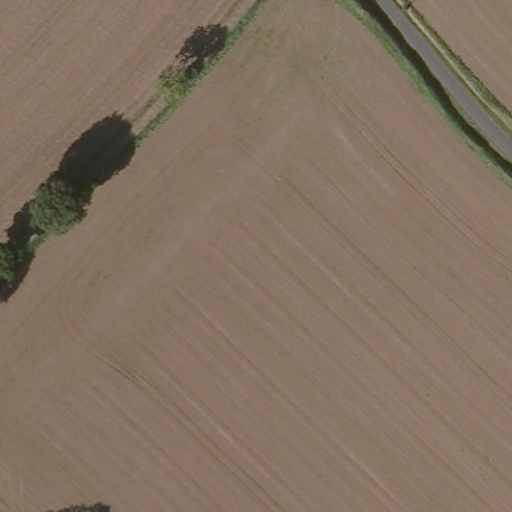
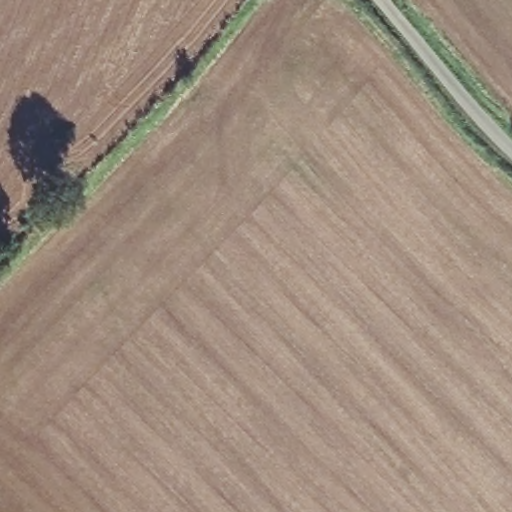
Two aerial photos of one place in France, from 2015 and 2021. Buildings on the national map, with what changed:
[]

